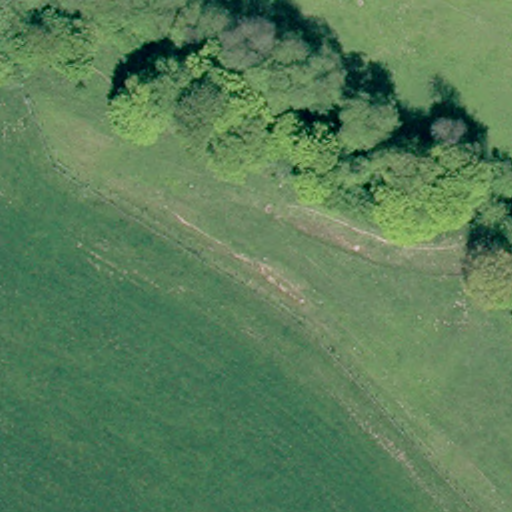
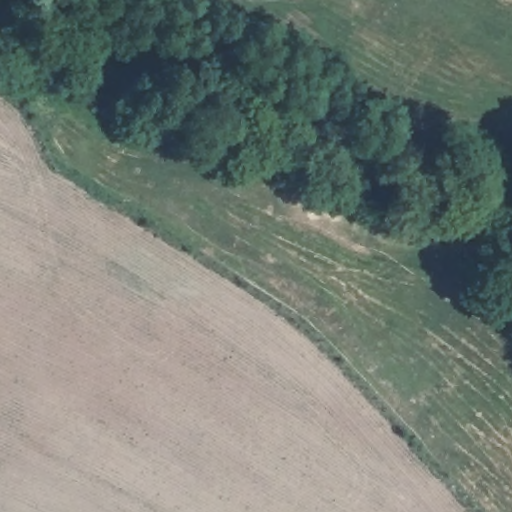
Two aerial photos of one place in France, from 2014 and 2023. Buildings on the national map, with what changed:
[]

